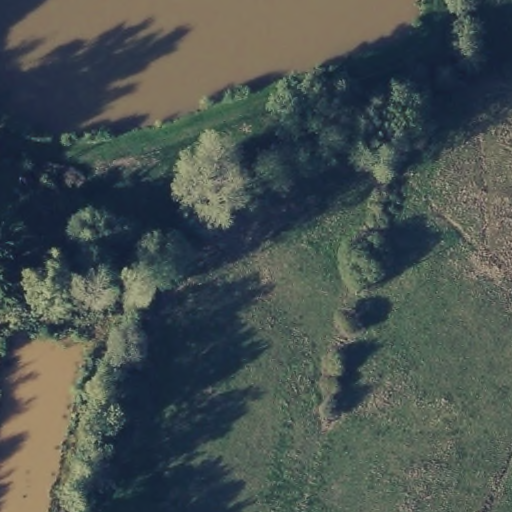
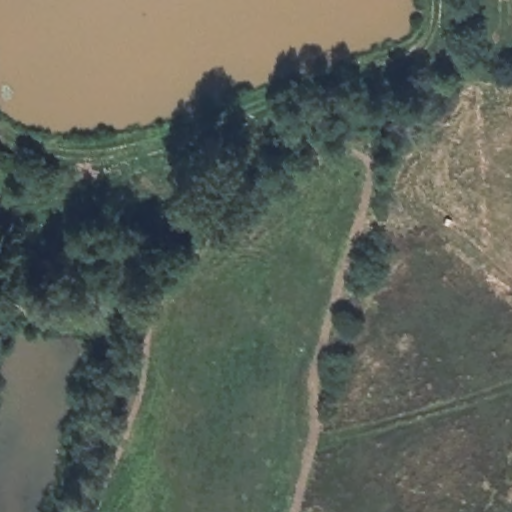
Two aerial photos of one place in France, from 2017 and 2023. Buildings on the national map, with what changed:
[]

